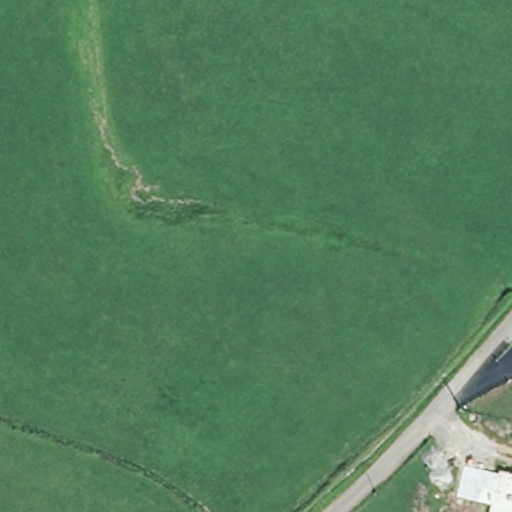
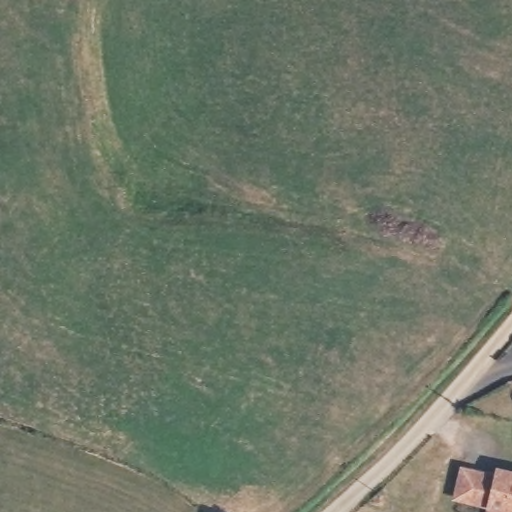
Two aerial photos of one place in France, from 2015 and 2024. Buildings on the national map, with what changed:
new [(486,512),(487,507),(451,500),(460,465),(494,475),(497,465),(512,469),(512,512),(486,512)]

